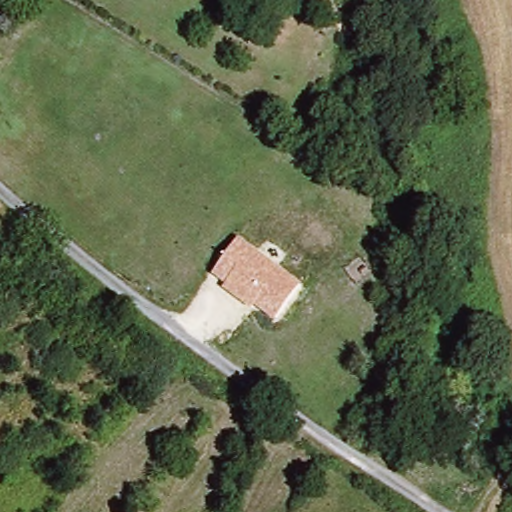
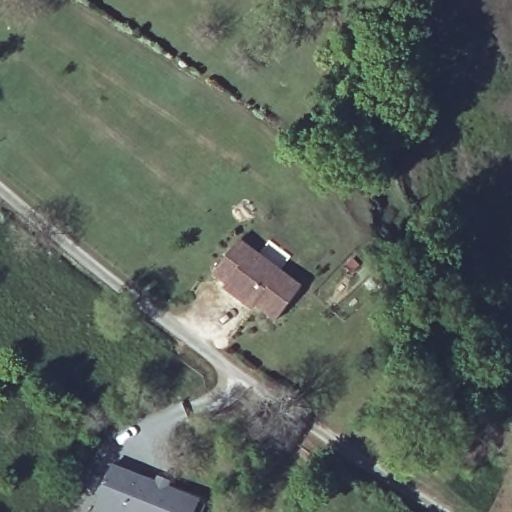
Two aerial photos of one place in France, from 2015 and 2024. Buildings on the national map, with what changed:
unchanged [(303,286),(277,322),(256,306),(252,311),(223,289),(227,283),(215,275),(242,238),(303,286)]
new [(203,498),(197,512),(93,512),(113,463),(203,498)]

